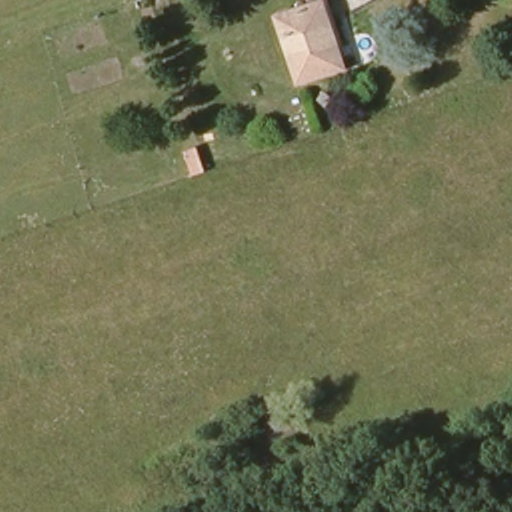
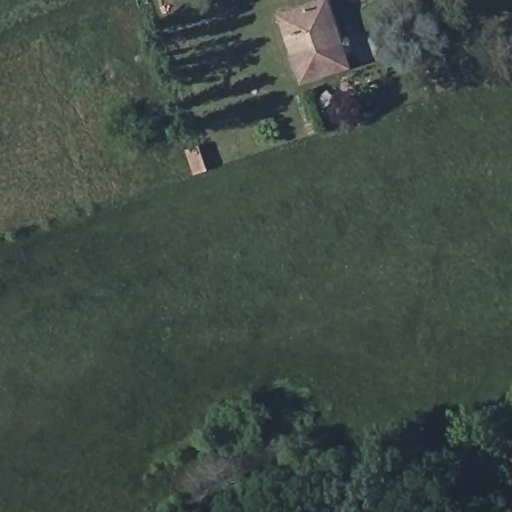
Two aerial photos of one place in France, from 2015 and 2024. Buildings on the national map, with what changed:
unchanged [(302,74),(282,10),(313,0),(329,0),(350,59),(302,74)]

